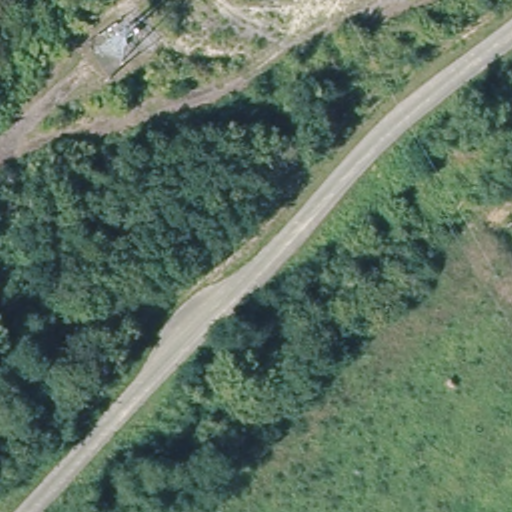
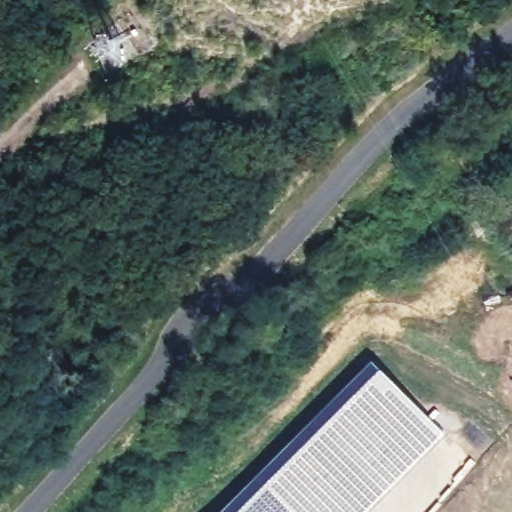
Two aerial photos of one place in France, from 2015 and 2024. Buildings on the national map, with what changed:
unchanged [(154,8),(157,9),(160,11),(164,16),(164,20),(164,23),(162,29),(157,32),(153,34),(148,34),(143,31),(141,28),(140,25),(140,21),(140,19),(142,14),(145,9),(150,8),(154,8)]
unchanged [(137,68),(107,96),(80,67),(110,38),(137,68)]
unchanged [(17,166),(21,166),(22,167),(24,168),(26,170),(28,172),(29,175),(30,181),(28,185),(27,186),(26,188),(22,190),(17,190),(16,190),(14,189),(12,189),(9,187),(6,183),(5,181),(5,174),(6,173),(6,171),(9,168),(12,166),(14,165),(17,166)]
new [(445,435),(368,512),(221,512),(372,362),(445,435)]

